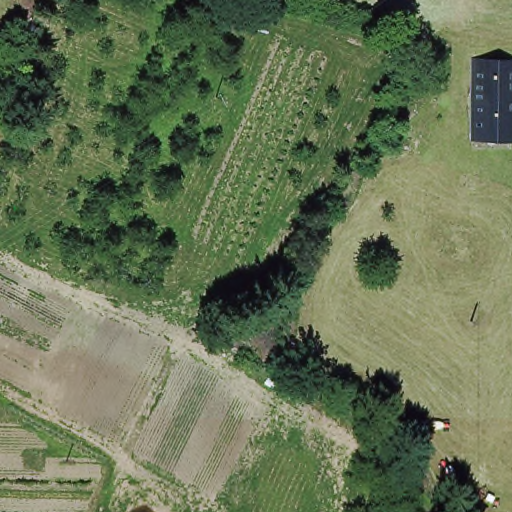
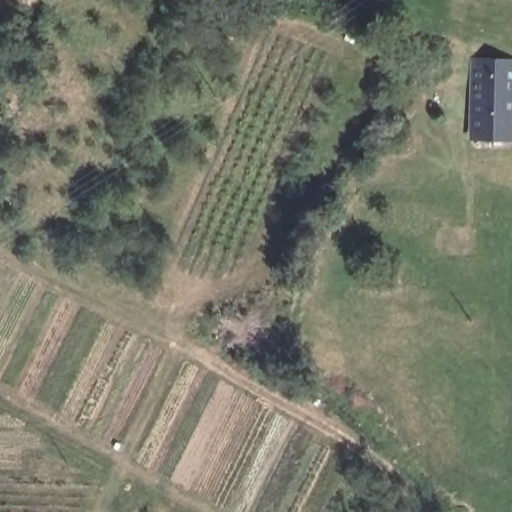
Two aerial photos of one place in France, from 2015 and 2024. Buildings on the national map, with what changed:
unchanged [(512,61),(512,137),(478,138),(481,61),(512,61)]

